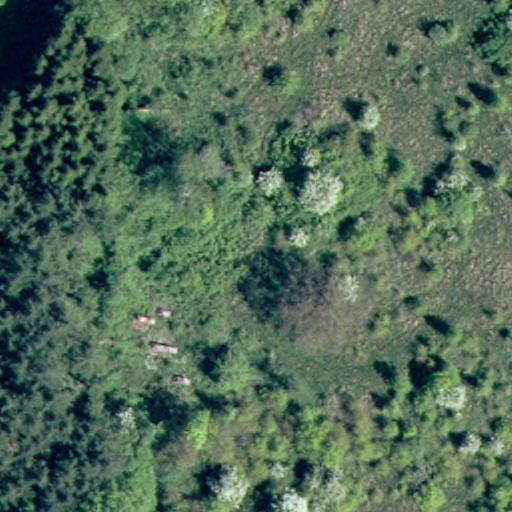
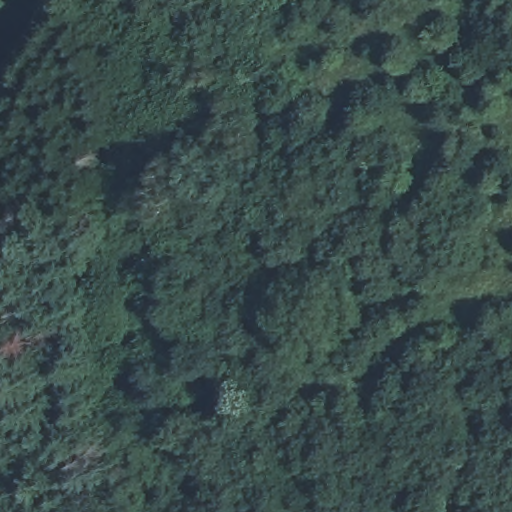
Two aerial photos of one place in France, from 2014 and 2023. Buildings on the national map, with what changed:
[]

